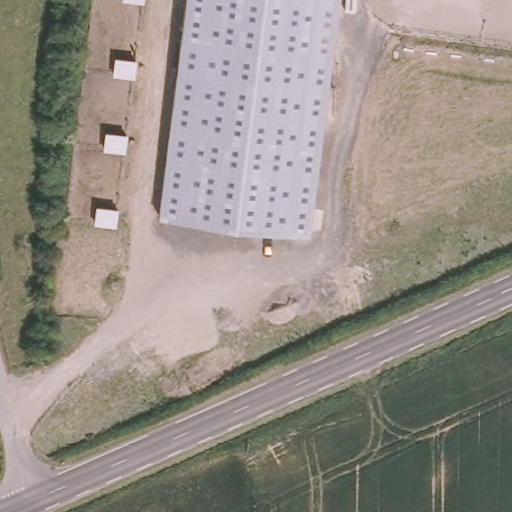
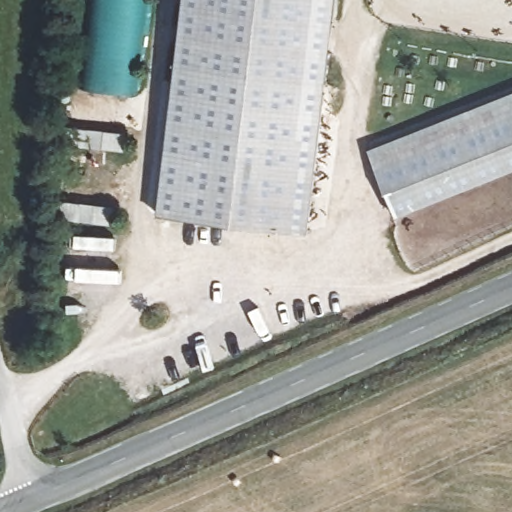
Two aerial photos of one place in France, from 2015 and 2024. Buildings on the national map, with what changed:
new [(136,97),(80,90),(91,0),(149,0),(136,97)]
unchanged [(308,233),(158,215),(185,0),(337,0),(308,233)]
new [(512,169),(395,217),(370,152),(512,96),(512,169)]

